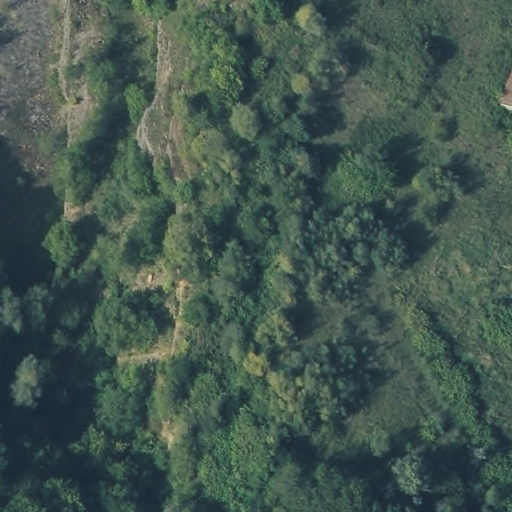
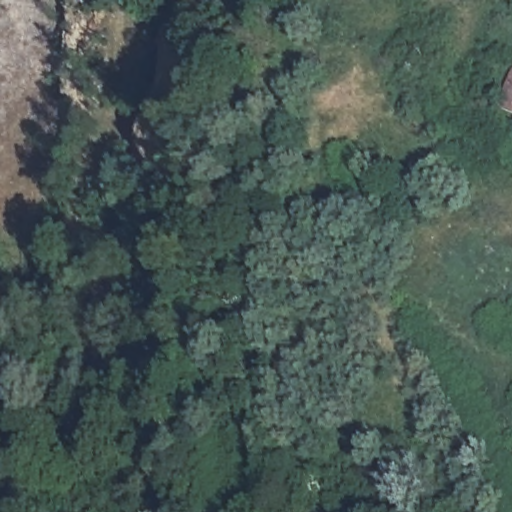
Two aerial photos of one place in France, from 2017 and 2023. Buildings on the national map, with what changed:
unchanged [(512,72),(512,109),(498,103),(512,72)]
unchanged [(512,116),(512,120),(510,120),(512,116)]

